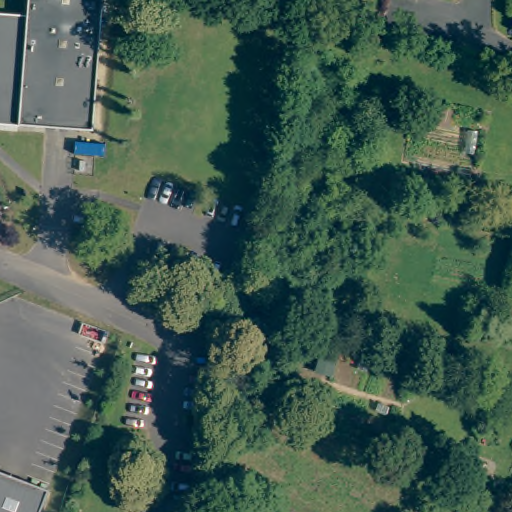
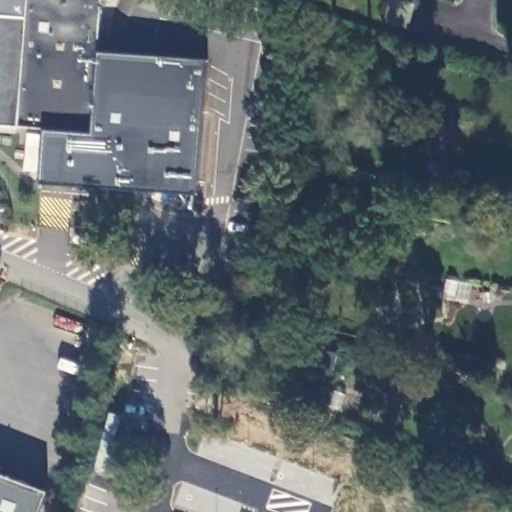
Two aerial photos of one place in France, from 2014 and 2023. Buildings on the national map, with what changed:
new [(30,17),(0,15),(0,0),(32,0),(30,17)]
unchanged [(115,2),(105,1),(94,134),(20,127),(20,129),(0,127),(0,15),(30,17),(32,0),(115,0),(115,2)]
new [(205,60),(195,195),(41,181),(45,130),(94,134),(101,52),(205,60)]
unchanged [(40,512),(0,512),(0,473),(47,491),(40,512)]

